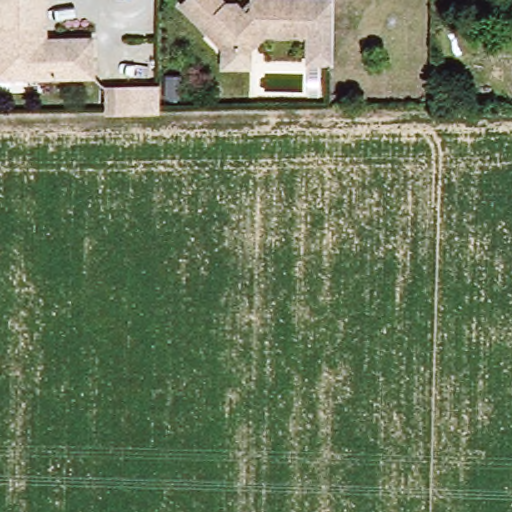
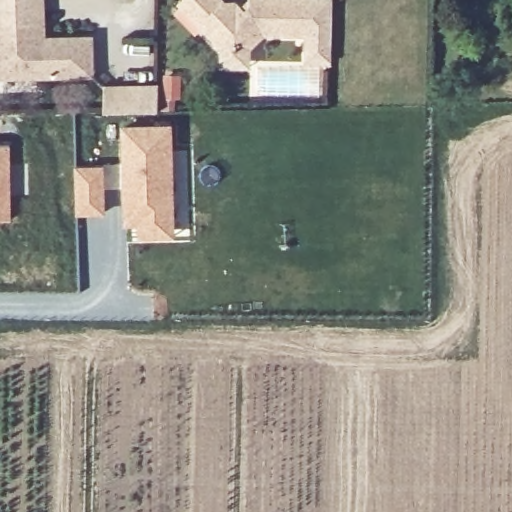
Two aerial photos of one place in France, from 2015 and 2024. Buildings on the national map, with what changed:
unchanged [(89,37),(90,75),(0,78),(0,0),(39,0),(41,25),(44,25),(45,39),(89,37)]
unchanged [(219,43),(192,18),(177,5),(182,0),(333,0),(332,57),(303,57),(303,31),(263,29),(249,44),(236,59),(219,43)]
new [(184,73),(184,109),(167,110),(163,74),(184,73)]
unchanged [(159,113),(105,114),(105,89),(159,88),(159,113)]
new [(122,125),(174,122),(177,191),(176,239),(127,241),(125,225),(121,183),(122,125)]
new [(12,219),(0,220),(0,143),(12,142),(12,219)]
new [(109,164),(107,215),(75,216),(74,164),(109,164)]

